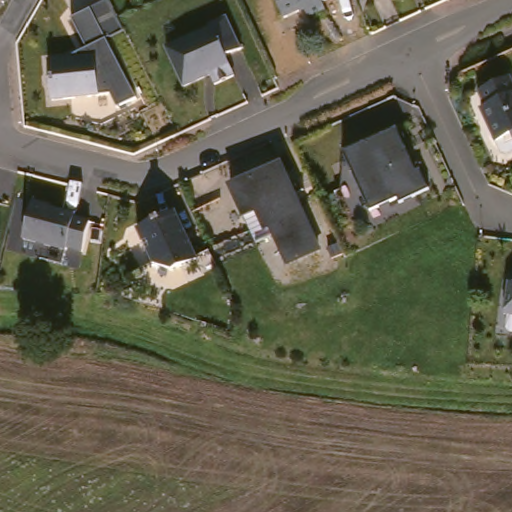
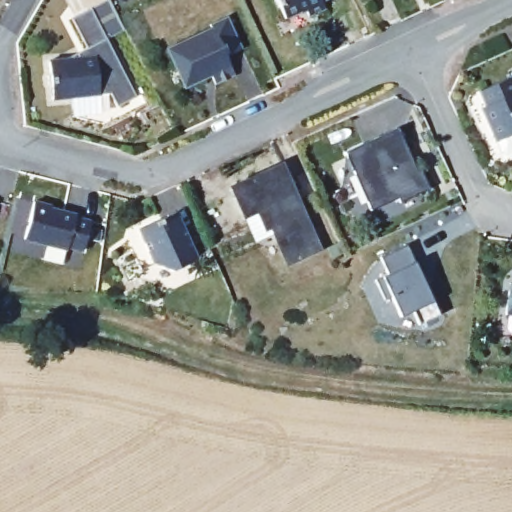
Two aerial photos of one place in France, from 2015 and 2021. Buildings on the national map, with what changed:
unchanged [(302,8),(281,17),(273,0),(318,0),(322,8),(305,16),(302,8)]
unchanged [(63,58),(83,46),(70,20),(91,12),(130,97),(117,101),(108,92),(91,95),(49,98),(46,61),(63,58)]
unchanged [(171,50),(216,30),(214,26),(232,18),(246,50),(229,57),(238,76),(219,86),(215,76),(188,87),(171,50)]
unchanged [(508,133),(501,136),(485,103),(490,101),(483,86),(512,73),(512,138),(511,139),(508,133)]
unchanged [(430,190),(416,197),(419,204),(372,223),(367,215),(353,221),(337,188),(343,148),(395,126),(430,190)]
unchanged [(277,160),(320,249),(281,268),(252,219),(238,221),(223,186),(277,160)]
unchanged [(55,204),(55,206),(80,213),(80,215),(95,219),(88,248),(72,244),(71,247),(29,236),(38,199),(55,204)]
unchanged [(206,254),(190,261),(196,275),(181,282),(148,265),(161,258),(146,224),(184,207),(206,254)]
new [(387,276),(379,259),(406,248),(437,319),(416,328),(410,314),(398,319),(389,299),(382,302),(374,282),(387,276)]
unchanged [(511,271),(512,271),(512,313),(506,313),(511,271)]

